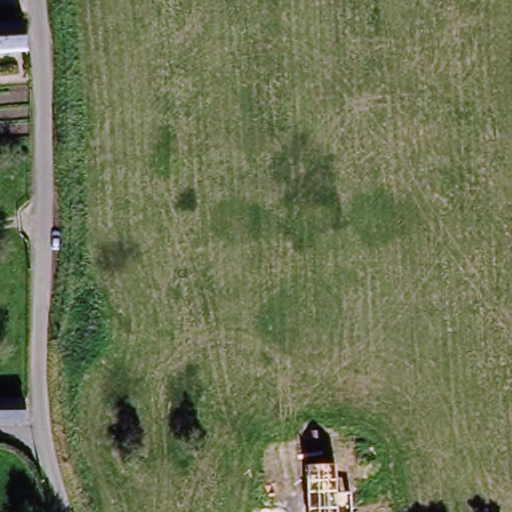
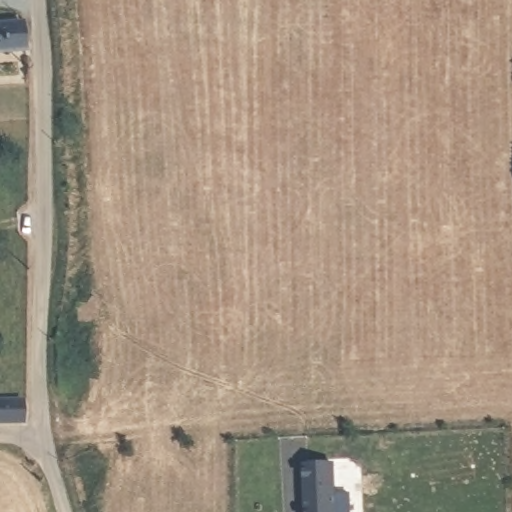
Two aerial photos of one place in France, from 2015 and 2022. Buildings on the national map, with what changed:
unchanged [(0,55),(0,31),(26,31),(29,56),(0,55)]
unchanged [(0,403),(23,403),(23,424),(0,425),(0,403)]
demolished [(329,458),(331,512),(306,512),(305,459),(329,458)]
new [(337,463),(338,496),(351,494),(352,512),(306,512),(303,465),(337,463)]

